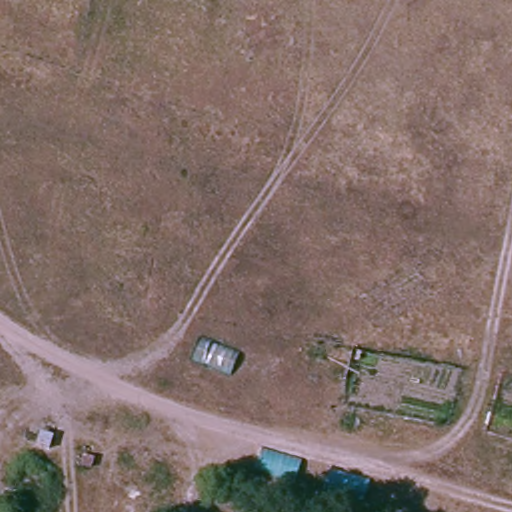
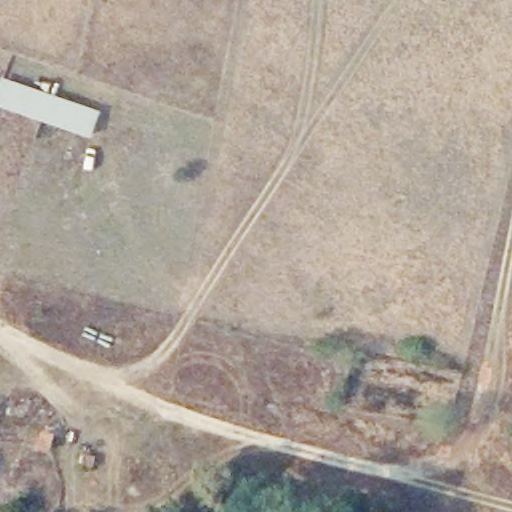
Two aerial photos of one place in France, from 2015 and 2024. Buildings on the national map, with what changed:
new [(101,111),(92,136),(0,104),(0,86),(3,76),(101,111)]

